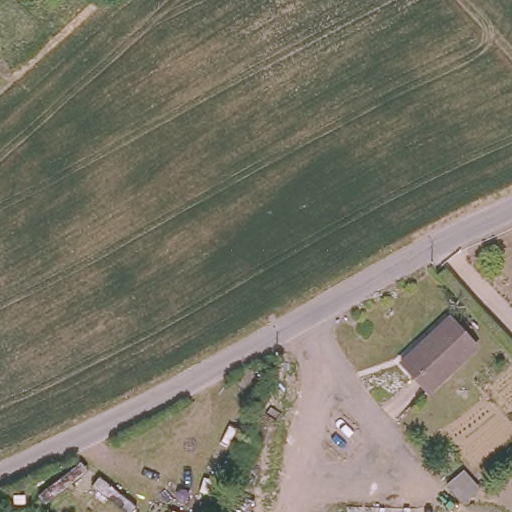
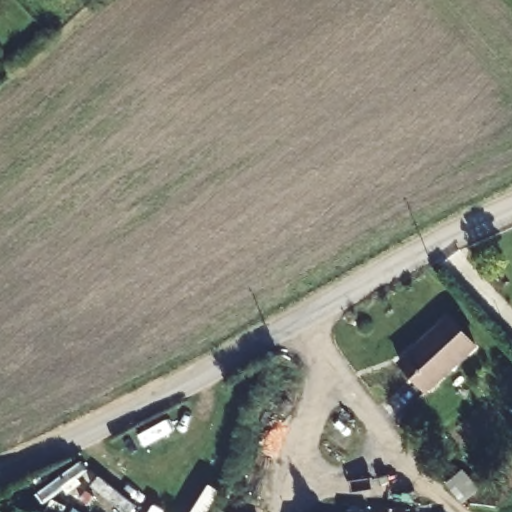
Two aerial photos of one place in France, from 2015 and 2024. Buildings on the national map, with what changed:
unchanged [(470,346),(423,392),(395,363),(441,316),(470,346)]
unchanged [(227,512),(215,512),(217,508),(227,512)]

